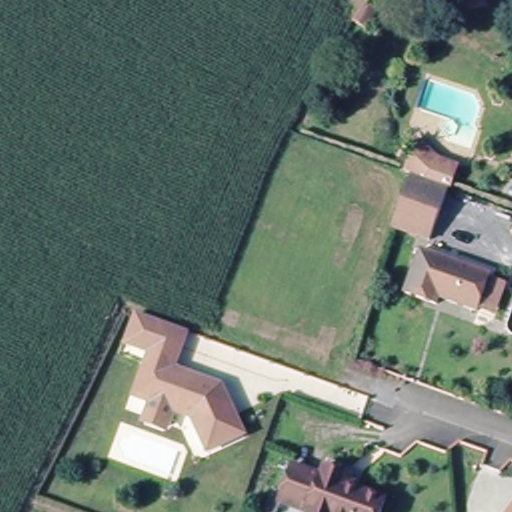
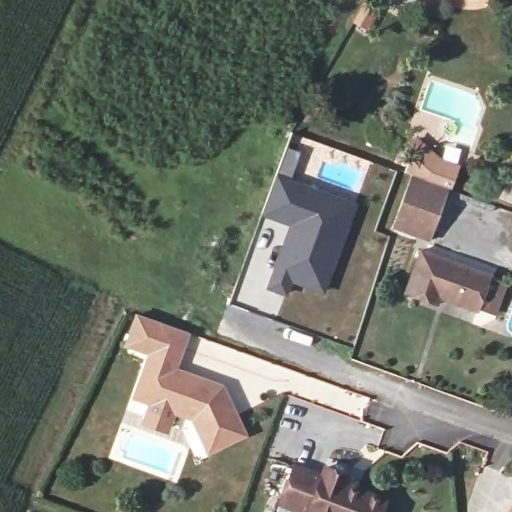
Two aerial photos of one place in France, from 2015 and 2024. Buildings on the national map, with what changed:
unchanged [(372,13),(361,30),(348,23),(358,5),(372,13)]
unchanged [(403,171),(408,156),(413,154),(406,143),(415,136),(434,159),(454,166),(446,187),(453,190),(435,240),(397,226),(416,176),(403,171)]
new [(291,283),(285,297),(266,289),(289,225),(260,214),(277,173),(358,203),(323,295),(291,283)]
unchanged [(486,308),(471,303),(470,306),(434,294),(432,301),(401,289),(417,248),(482,272),(481,274),(496,280),(486,308)]
unchanged [(149,421),(156,402),(135,396),(151,351),(121,341),(132,310),(162,321),(189,331),(175,369),(222,385),(242,432),(208,447),(194,415),(173,409),(166,427),(149,421)]
unchanged [(296,468),(323,478),(328,469),(352,478),(348,487),(387,501),(383,512),(302,512),(282,504),(296,468)]

